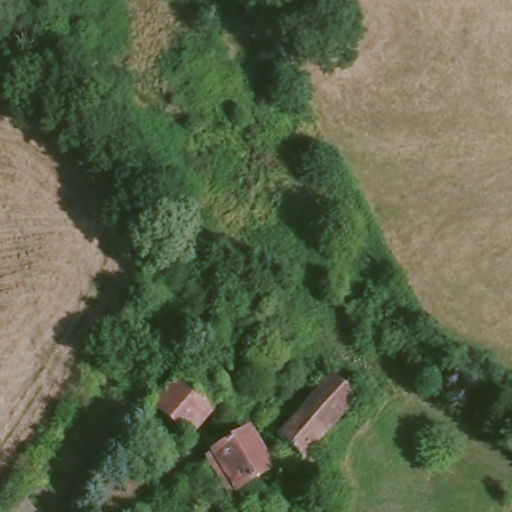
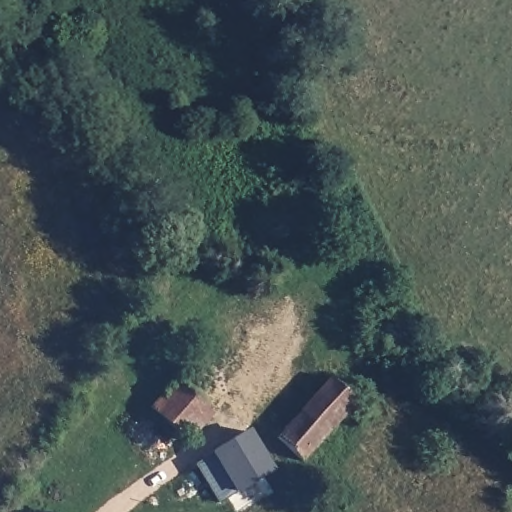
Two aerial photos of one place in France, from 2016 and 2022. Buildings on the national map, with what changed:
unchanged [(247,346),(239,338),(262,316),(270,322),(247,346)]
unchanged [(308,461),(281,438),(335,379),(360,402),(308,461)]
unchanged [(153,412),(179,387),(193,400),(211,381),(232,402),(215,420),(188,447),(153,412)]
unchanged [(275,468),(242,492),(217,457),(251,433),(275,468)]

